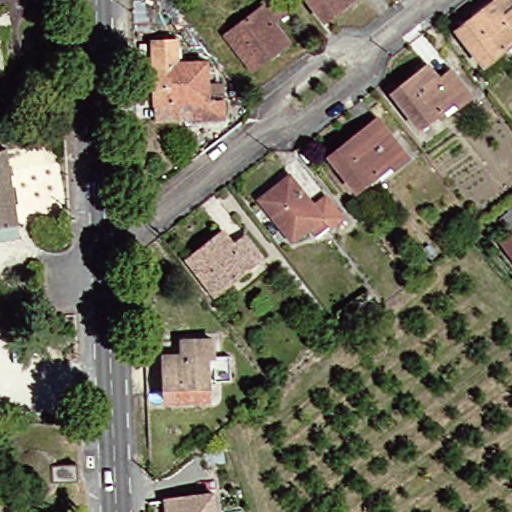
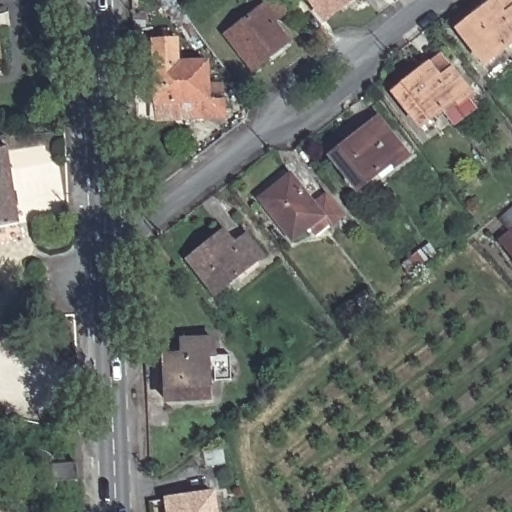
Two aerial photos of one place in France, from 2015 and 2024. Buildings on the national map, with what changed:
unchanged [(227,24),(258,0),(269,0),(275,10),(268,17),(284,38),(257,61),(227,24)]
unchanged [(294,0),(341,0),(312,22),(294,0)]
unchanged [(483,3),(494,13),(507,5),(512,12),(512,36),(511,35),(474,62),(451,28),(483,3)]
unchanged [(146,96),(145,35),(167,32),(169,54),(192,55),(194,96),(209,97),(210,110),(182,108),(146,106),(146,96)]
unchanged [(380,99),(414,74),(424,83),(433,76),(455,102),(442,113),(437,106),(406,130),(380,99)]
unchanged [(322,154),(355,128),(369,139),(377,135),(399,160),(390,170),(381,160),(347,187),(322,154)]
unchanged [(2,150),(9,236),(0,236),(0,151),(2,150)]
unchanged [(301,210),(311,202),(327,226),(318,235),(309,226),(283,245),(252,204),(280,181),(301,210)]
unchanged [(512,224),(512,269),(490,240),(512,224)]
unchanged [(225,246),(236,240),(256,264),(245,275),(236,267),(204,293),(178,261),(210,235),(225,246)]
unchanged [(195,357),(196,403),(154,404),(151,362),(195,357)]
unchanged [(207,512),(161,512),(161,501),(207,501),(207,512)]

